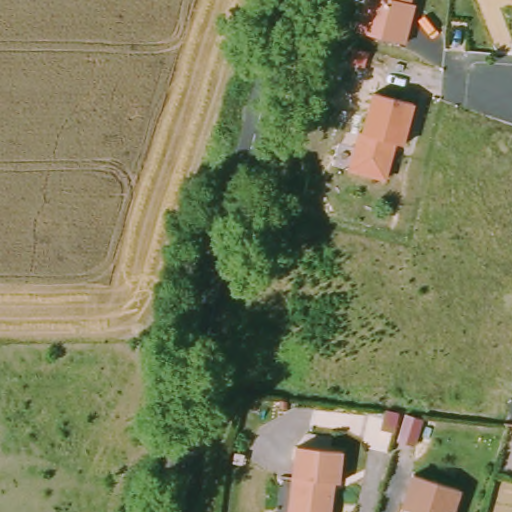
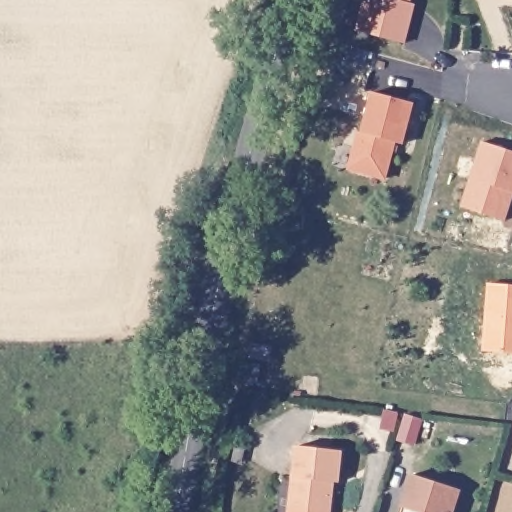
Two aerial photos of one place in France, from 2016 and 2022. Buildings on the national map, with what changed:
unchanged [(402,41),(356,27),(363,0),(408,0),(408,1),(413,2),(411,11),(402,41)]
unchanged [(407,142),(399,141),(390,177),(354,169),(364,131),(367,131),(378,92),(418,102),(407,142)]
new [(483,143),(512,152),(512,200),(506,221),(462,206),(483,143)]
new [(512,286),(512,353),(483,351),(473,312),(488,285),(512,286)]
unchanged [(393,438),(396,427),(399,414),(416,418),(413,428),(409,442),(393,438)]
unchanged [(342,481),(333,481),(333,487),(335,492),(332,512),(327,512),(291,508),(300,445),(346,450),(342,481)]
unchanged [(450,512),(406,512),(399,510),(410,477),(456,494),(450,512)]

